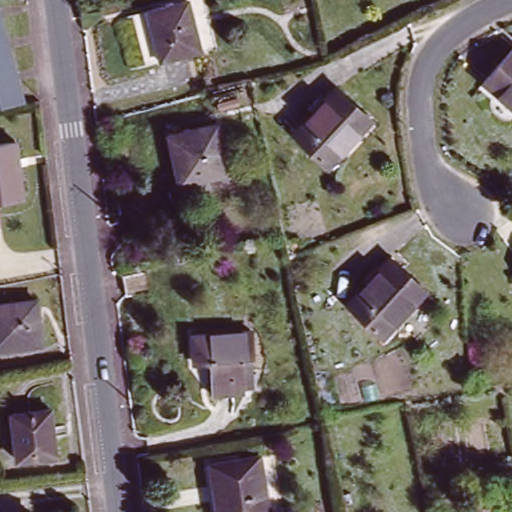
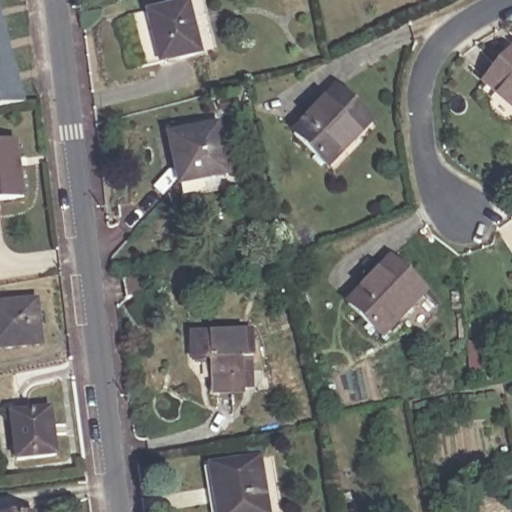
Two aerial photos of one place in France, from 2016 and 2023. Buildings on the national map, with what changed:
unchanged [(184,6),(190,51),(154,59),(147,11),(184,6)]
unchanged [(5,36),(9,51),(14,69),(17,82),(25,107),(0,111),(0,20),(5,36)]
unchanged [(512,53),(512,106),(485,81),(512,53)]
unchanged [(342,86),(372,120),(327,165),(296,131),(342,86)]
unchanged [(225,130),(233,175),(192,180),(190,160),(179,160),(176,135),(225,130)]
unchanged [(17,140),(23,193),(0,196),(0,142),(17,140)]
unchanged [(393,265),(425,298),(385,339),(352,305),(393,265)]
unchanged [(160,281),(161,301),(132,303),(130,285),(160,281)]
unchanged [(42,300),(47,348),(0,353),(0,305),(42,300)]
unchanged [(247,393),(213,393),(212,361),(194,361),(194,332),(254,330),(257,375),(257,392),(247,393)]
unchanged [(53,406),(59,453),(20,458),(15,411),(53,406)]
unchanged [(264,463),(268,512),(220,512),(216,467),(264,463)]

